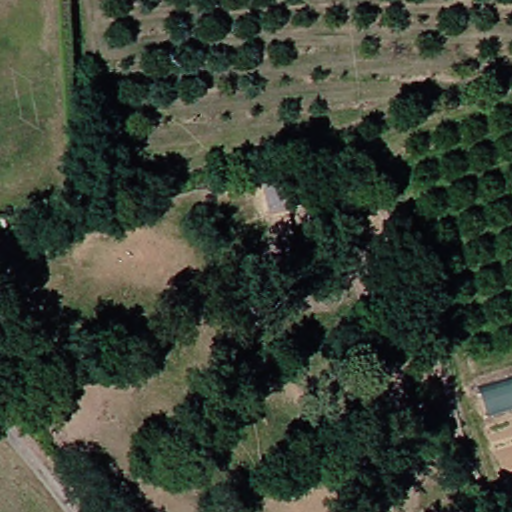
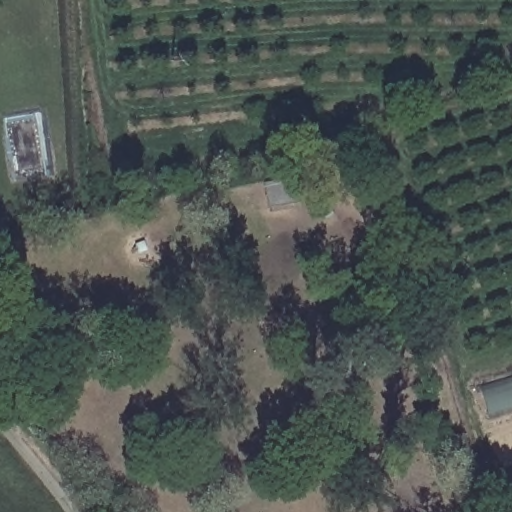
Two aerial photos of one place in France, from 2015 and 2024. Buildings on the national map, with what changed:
unchanged [(512,407),(483,416),(477,393),(512,382),(512,407)]

